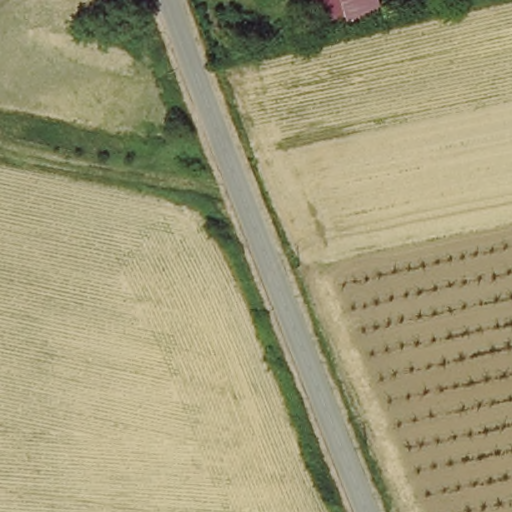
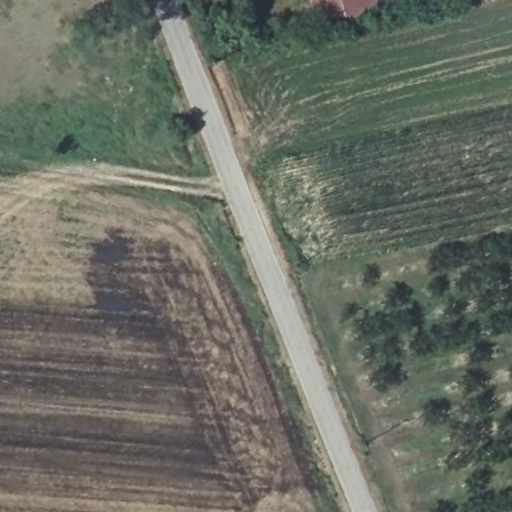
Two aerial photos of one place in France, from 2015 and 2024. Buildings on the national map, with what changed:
unchanged [(365,14),(323,25),(312,0),(361,0),(365,14)]

